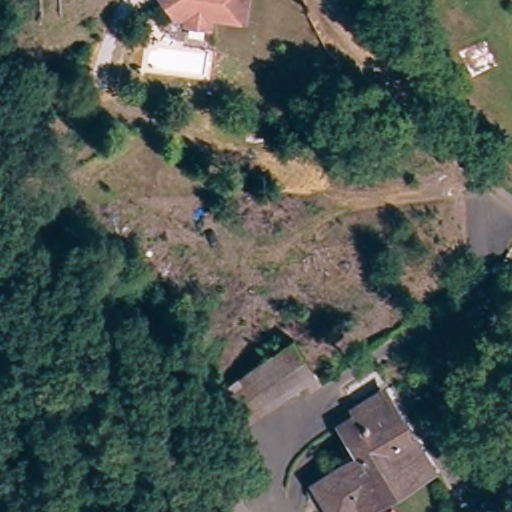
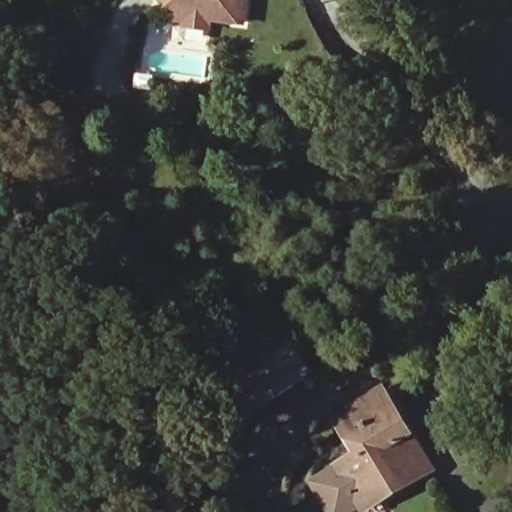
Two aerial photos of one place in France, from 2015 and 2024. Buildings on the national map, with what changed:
unchanged [(182,29),(183,20),(168,0),(251,0),(246,25),(212,17),(211,25),(209,35),(182,29)]
unchanged [(300,340),(321,376),(325,384),(314,390),(310,382),(307,378),(237,417),(218,385),(300,340)]
unchanged [(362,459),(335,422),(353,409),(346,399),(375,377),(382,387),(417,433),(411,437),(436,471),(412,488),(383,509),(377,501),(361,512),(336,512),(320,490),(362,459)]

